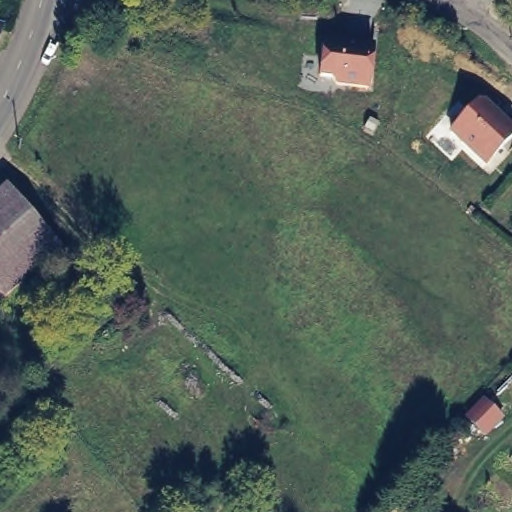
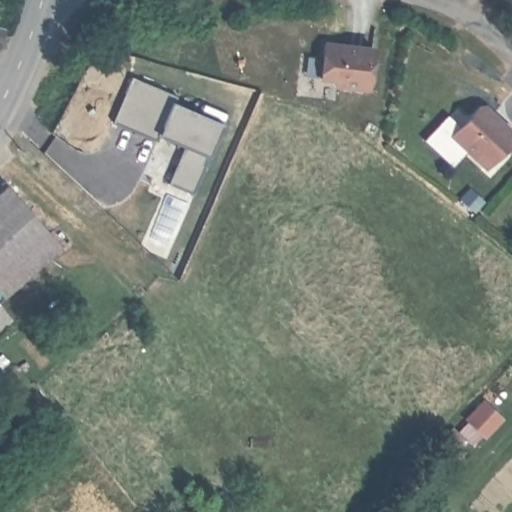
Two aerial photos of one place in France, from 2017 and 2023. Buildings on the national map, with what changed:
unchanged [(0,63),(0,34),(13,38),(0,63)]
unchanged [(375,45),(370,92),(333,90),(332,80),(318,79),(323,39),(375,45)]
new [(170,182),(185,146),(159,134),(157,139),(113,120),(133,78),(177,96),(173,103),(222,125),(208,156),(193,193),(170,182)]
unchanged [(512,131),(512,138),(485,169),(447,136),(480,101),(512,131)]
unchanged [(59,245),(6,292),(0,285),(0,212),(16,197),(59,245)]

